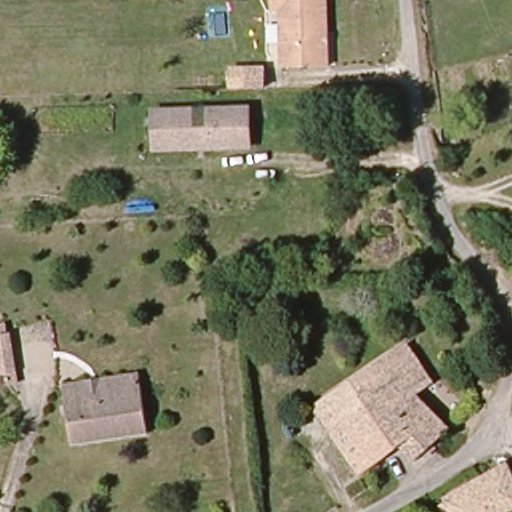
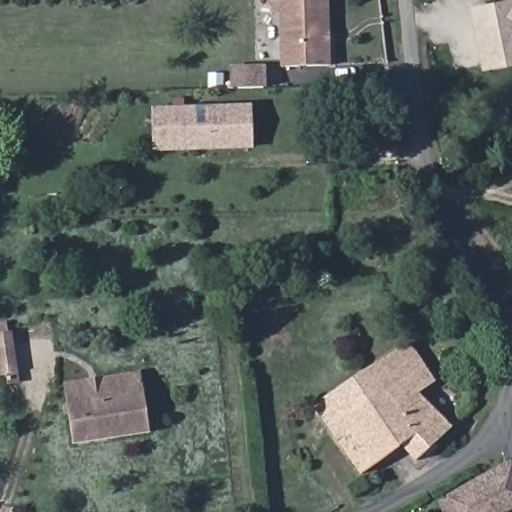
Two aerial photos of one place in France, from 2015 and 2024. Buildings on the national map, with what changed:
unchanged [(278,63),(277,6),(268,6),(268,0),(324,0),(326,62),(278,63)]
new [(482,69),(470,4),(492,0),(512,0),(512,64),(482,69)]
unchanged [(231,88),(231,68),(256,69),(256,87),(231,88)]
unchanged [(152,110),(167,110),(246,108),(247,146),(168,148),(153,149),(152,110)]
unchanged [(0,330),(8,328),(14,367),(0,369),(0,330)]
unchanged [(412,347),(439,386),(421,398),(450,443),(444,446),(410,466),(392,443),(351,469),(312,409),(412,347)]
unchanged [(121,389),(117,370),(139,367),(148,430),(73,441),(66,397),(121,389)]
unchanged [(64,379),(117,370),(121,389),(66,397),(64,379)]
unchanged [(498,512),(452,512),(447,500),(511,464),(512,467),(512,504),(498,512)]

